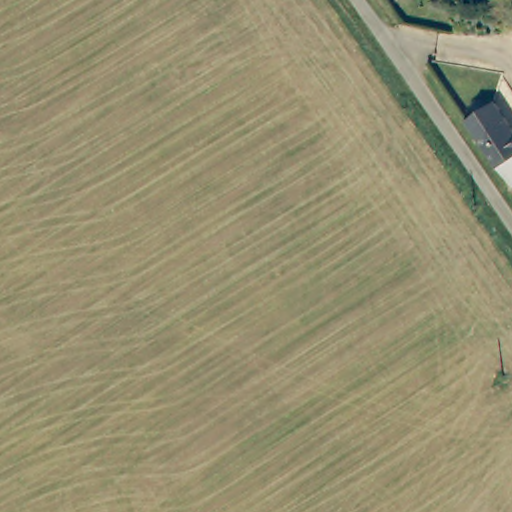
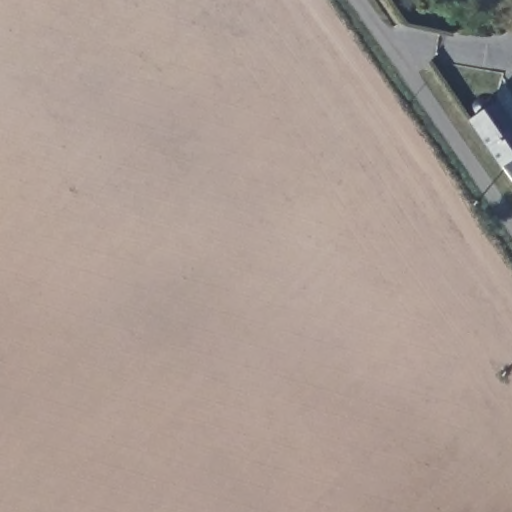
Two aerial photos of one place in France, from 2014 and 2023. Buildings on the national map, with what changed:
unchanged [(475,121),(470,114),(470,110),(470,106),(473,103),(476,101),(480,101),(484,103),(486,105),(491,111),(497,108),(512,129),(512,185),(467,126),(475,121)]

